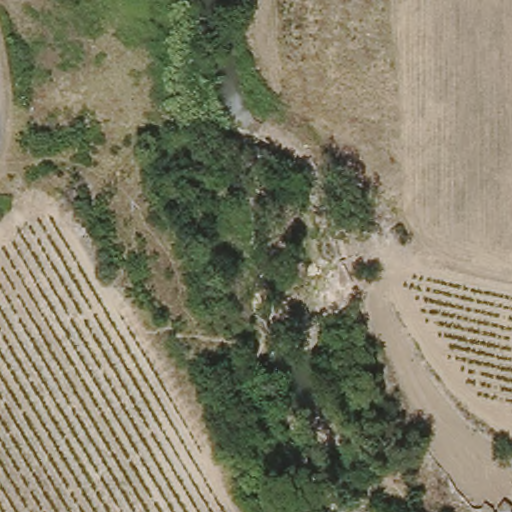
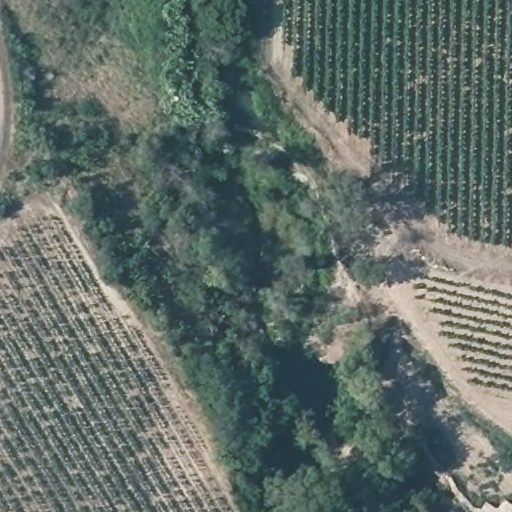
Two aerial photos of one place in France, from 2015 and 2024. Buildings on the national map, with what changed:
[]

